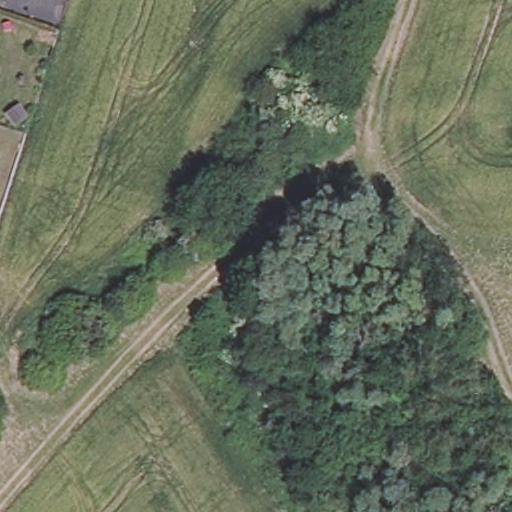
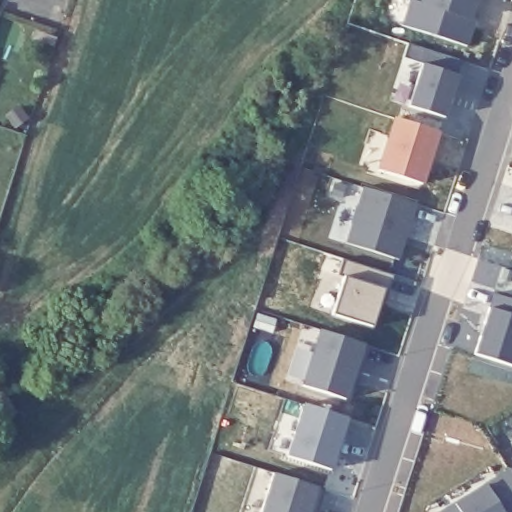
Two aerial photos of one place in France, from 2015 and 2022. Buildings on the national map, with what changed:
new [(476,30),(470,50),(405,29),(413,3),(423,6),(425,0),(481,0),(473,22),(478,23),(476,30)]
new [(458,74),(445,117),(408,108),(422,63),(458,74)]
new [(441,135),(425,188),(381,174),(398,121),(441,135)]
new [(416,202),(398,261),(345,244),(362,186),(416,202)]
new [(394,273),(384,304),(380,299),(372,326),(332,314),(342,277),(338,276),(343,258),(394,273)]
new [(512,294),(512,367),(472,355),(487,307),(494,290),(512,294)]
new [(366,345),(349,398),(305,385),(322,331),(366,345)]
new [(350,421),(333,474),(291,460),(307,407),(350,421)]
new [(508,434),(512,432),(512,441),(508,434)]
new [(450,512),(512,474),(512,512),(450,512)]
new [(328,493),(322,512),(266,512),(277,476),(328,493)]

